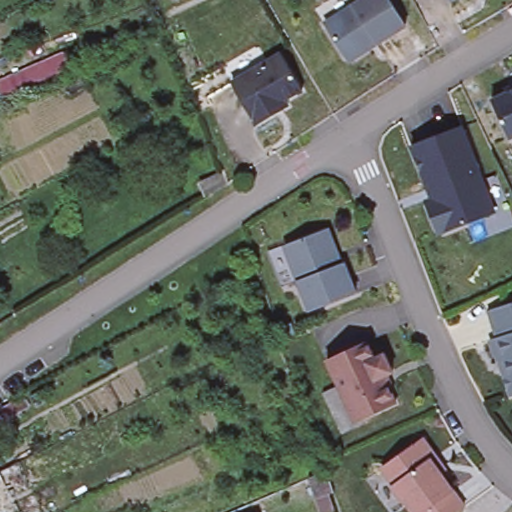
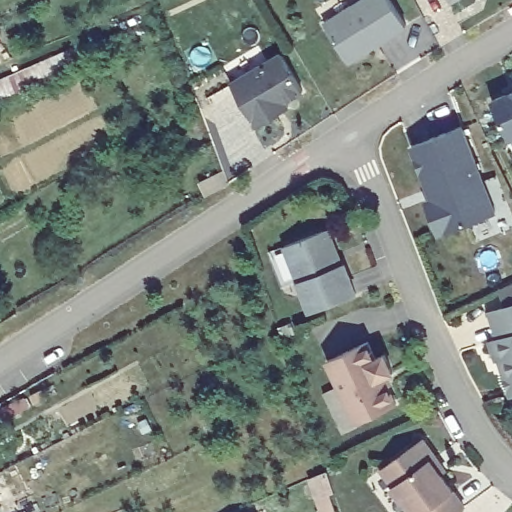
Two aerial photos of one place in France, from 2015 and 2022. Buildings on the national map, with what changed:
unchanged [(409,17),(379,35),(370,41),(356,50),(349,49),(327,15),(351,0),(398,0),(409,17)]
unchanged [(281,106),(260,119),(236,76),(271,55),(284,47),(306,84),(289,95),(291,100),(281,106)]
unchanged [(494,96),(509,90),(506,84),(512,81),(512,134),(494,96)]
unchanged [(498,213),(445,234),(439,230),(430,207),(433,200),(438,197),(434,186),(428,184),(414,147),(464,127),(498,213)]
unchanged [(338,250),(344,265),(346,263),(359,295),(313,312),(287,246),(325,231),(332,234),(338,250)]
unchanged [(499,360),(494,341),(501,339),(493,312),(512,306),(512,390),(507,372),(502,358),(499,360)]
unchanged [(326,393),(341,386),(329,362),(371,343),(378,359),(388,355),(396,373),(387,377),(399,404),(358,423),(343,430),(326,393)]
unchanged [(443,470),(468,503),(455,512),(420,512),(411,500),(385,464),(426,435),(438,452),(448,466),(443,470)]
unchanged [(21,512),(0,512),(0,475),(21,512)]
unchanged [(339,495),(324,500),(316,480),(331,475),(339,495)]

